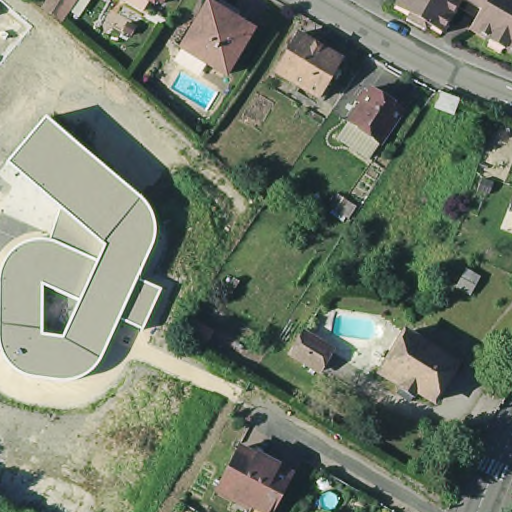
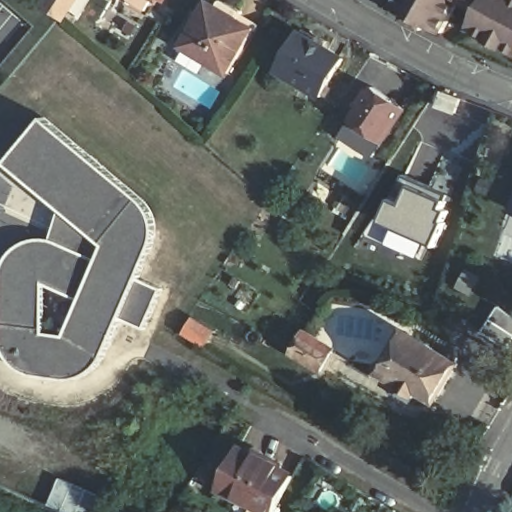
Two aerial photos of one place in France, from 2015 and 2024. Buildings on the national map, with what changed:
unchanged [(50,0),(78,0),(60,25),(43,10),(50,0)]
unchanged [(153,1),(150,0),(153,0),(153,1)]
unchanged [(442,31),(396,5),(398,0),(459,0),(442,31)]
unchanged [(508,38),(494,31),(492,36),(471,25),(478,14),(466,7),(470,0),(512,0),(512,48),(505,44),(508,38)]
unchanged [(206,7),(213,12),(216,8),(219,7),(236,16),(236,20),(233,24),(249,34),(223,78),(178,51),(206,7)]
unchanged [(296,33),(340,59),(318,97),(273,71),(296,33)]
unchanged [(347,119),(368,86),(400,106),(379,140),(347,119)]
unchanged [(461,96),(456,110),(439,104),(443,90),(461,96)]
demolished [(246,112),(259,91),(276,102),(264,123),(246,112)]
unchanged [(5,162),(45,117),(138,196),(146,203),(151,208),(153,216),(155,225),(155,234),(151,248),(138,277),(161,288),(143,330),(119,318),(103,356),(99,363),(93,369),(86,374),(77,378),(69,380),(56,379),(29,375),(22,372),(13,367),(6,360),(3,352),(0,342),(0,269),(3,261),(9,252),(16,246),(25,241),(36,239),(50,239),(60,208),(5,162)]
new [(442,207),(432,204),(428,216),(444,224),(433,246),(427,242),(419,260),(363,234),(392,192),(396,195),(406,175),(447,194),(442,207)]
unchanged [(512,202),(512,213),(509,211),(512,202)]
unchanged [(335,348),(323,368),(294,352),(307,331),(335,348)]
unchanged [(459,363),(437,400),(421,390),(416,397),(401,388),(403,385),(381,372),(408,331),(459,363)]
unchanged [(216,488),(237,449),(253,458),(255,454),(278,466),(276,470),(289,477),(270,512),(258,512),(233,498),(216,488)]

